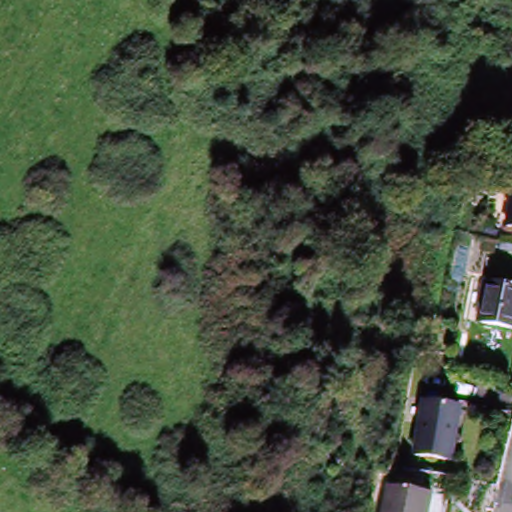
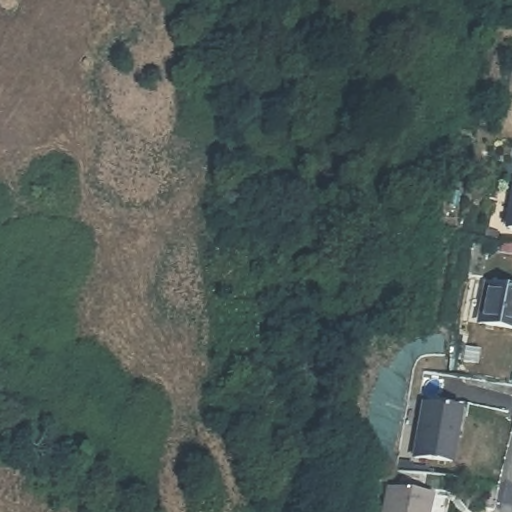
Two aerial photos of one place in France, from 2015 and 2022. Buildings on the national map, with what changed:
unchanged [(512,203),(512,226),(509,225),(512,203)]
unchanged [(489,287),(512,290),(512,330),(483,324),(489,287)]
unchanged [(419,459),(428,404),(465,411),(456,466),(419,459)]
unchanged [(389,489),(433,497),(430,512),(384,512),(389,489)]

